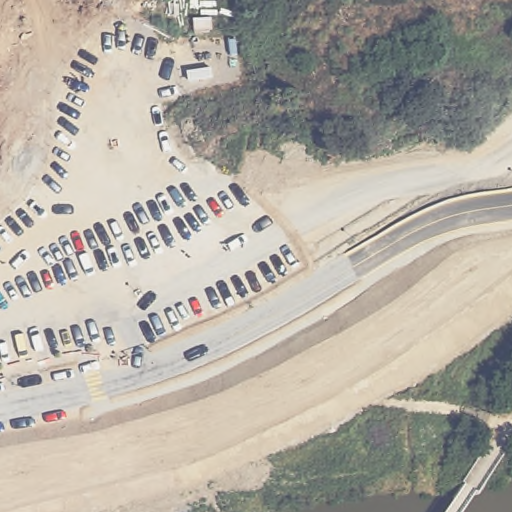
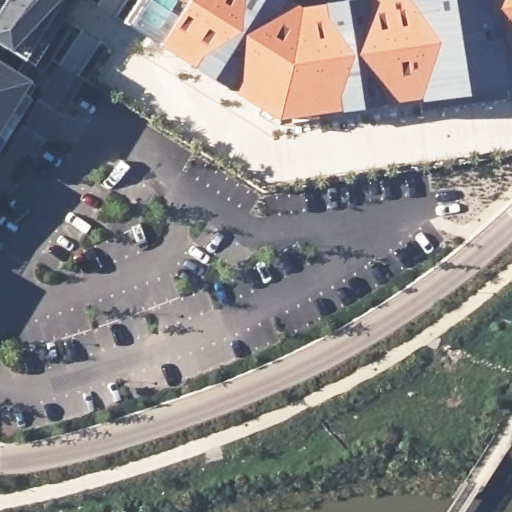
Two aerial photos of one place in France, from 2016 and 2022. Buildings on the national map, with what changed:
new [(73,0),(30,67),(20,61),(12,72),(25,80),(19,90),(27,98),(0,141),(0,0),(73,0)]
new [(512,0),(512,60),(501,61),(504,87),(273,119),(122,22),(125,17),(120,14),(128,0),(512,0)]

